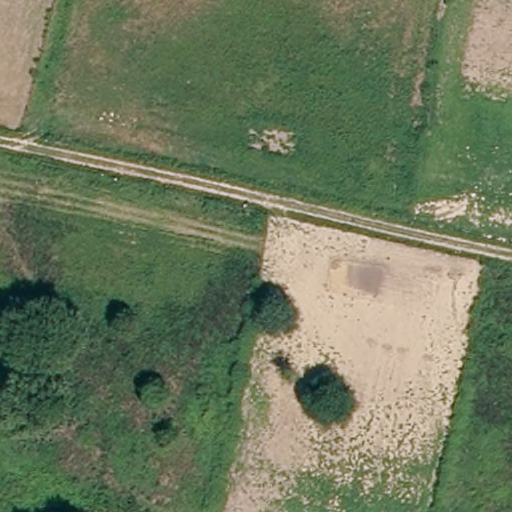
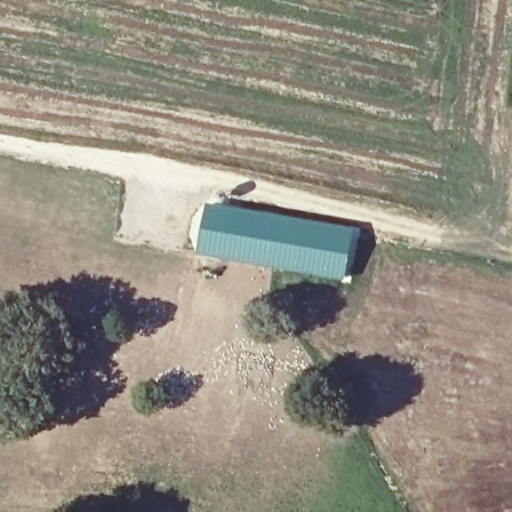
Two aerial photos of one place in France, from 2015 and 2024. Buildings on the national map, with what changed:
new [(356,230),(348,279),(200,253),(209,202),(356,230)]

